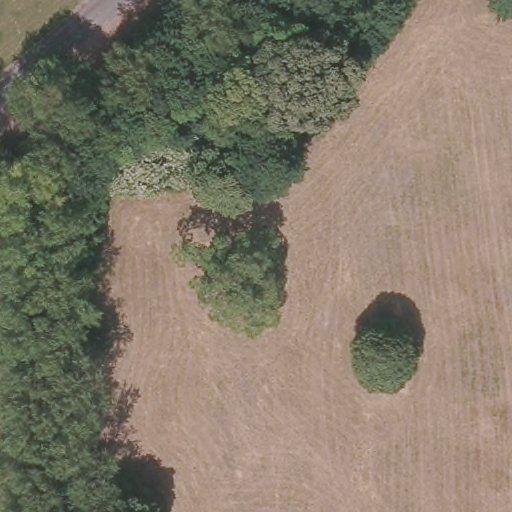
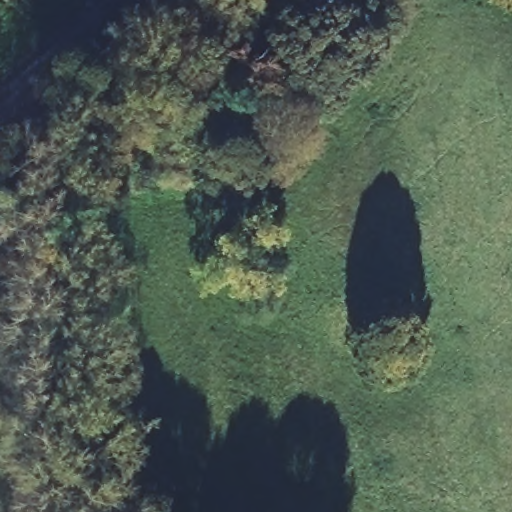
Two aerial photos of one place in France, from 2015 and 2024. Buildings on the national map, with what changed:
unchanged [(292,87),(293,98),(272,102),(270,89),(292,87)]

